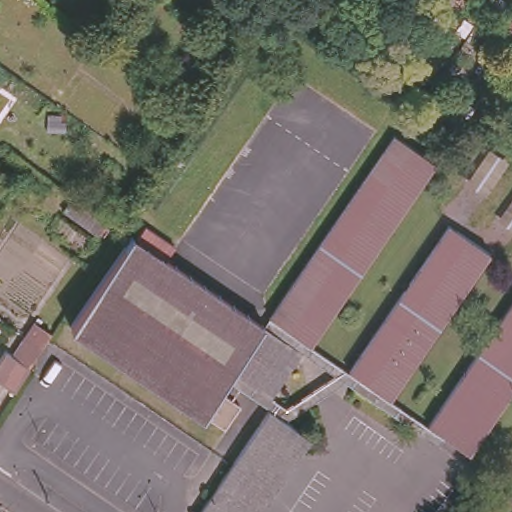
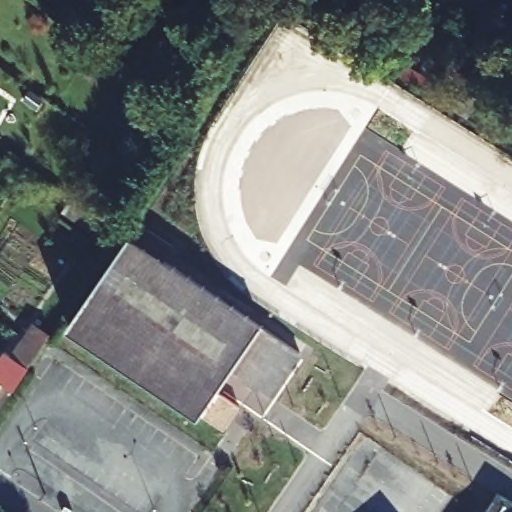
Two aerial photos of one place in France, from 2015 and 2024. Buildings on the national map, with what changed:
demolished [(397,130),(435,156),(312,339),(272,312),(397,130)]
unchanged [(68,318),(125,233),(130,235),(138,222),(167,243),(159,255),(258,323),(259,322),(296,348),(265,393),(227,366),(222,375),(213,387),(235,402),(220,425),(197,409),(198,406),(68,318)]
demolished [(448,225),(487,252),(387,399),(349,372),(448,225)]
demolished [(512,304),(512,385),(467,452),(445,437),(430,426),(512,304)]
unchanged [(0,374),(0,360),(9,347),(17,352),(30,333),(45,343),(17,386),(0,374)]
demolished [(270,412),(284,422),(307,438),(297,452),(260,428),(270,412)]
new [(512,512),(486,512),(500,491),(512,499),(512,512)]
demolished [(211,498),(232,512),(201,512),(211,498)]

